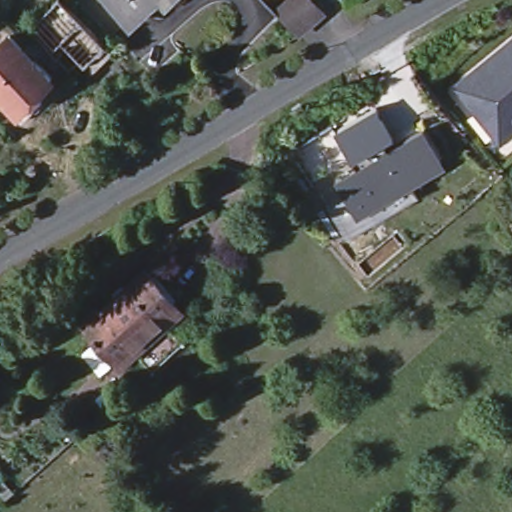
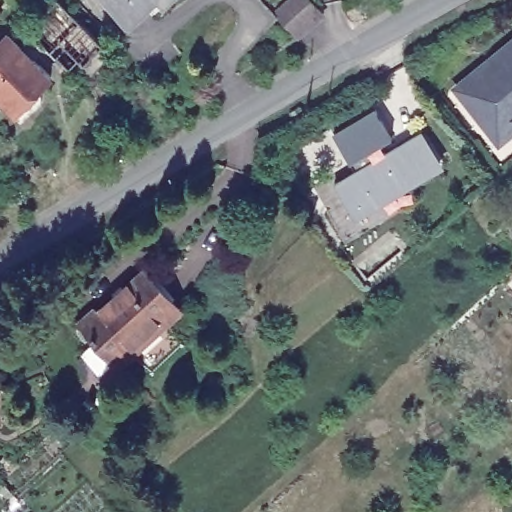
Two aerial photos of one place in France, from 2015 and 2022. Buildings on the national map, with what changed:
unchanged [(128,23),(106,0),(151,0),(141,10),(128,23)]
unchanged [(310,22),(297,35),(280,19),(274,12),(286,0),(310,0),(321,11),(310,22)]
unchanged [(57,2),(103,46),(112,56),(96,74),(86,66),(80,63),(70,71),(55,60),(26,34),(57,2)]
unchanged [(0,99),(0,39),(6,33),(47,73),(36,84),(40,88),(40,96),(35,101),(19,118),(11,111),(0,99)]
unchanged [(512,52),(512,131),(497,144),(458,95),(512,52)]
unchanged [(376,112),(393,140),(385,144),(388,151),(424,131),(445,171),(357,221),(333,184),(356,175),(352,162),(335,135),(376,112)]
unchanged [(178,307),(115,362),(78,321),(94,307),(97,312),(146,270),(178,307)]

